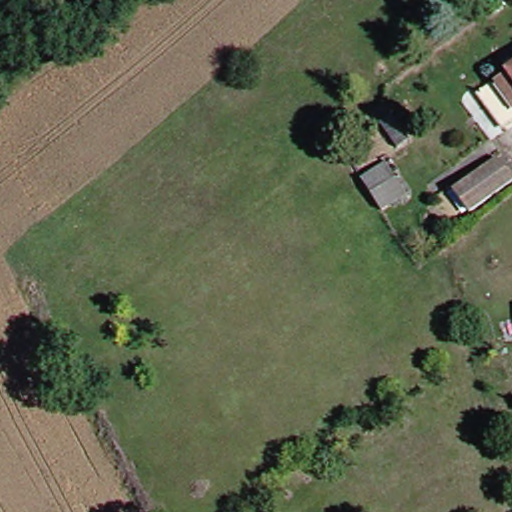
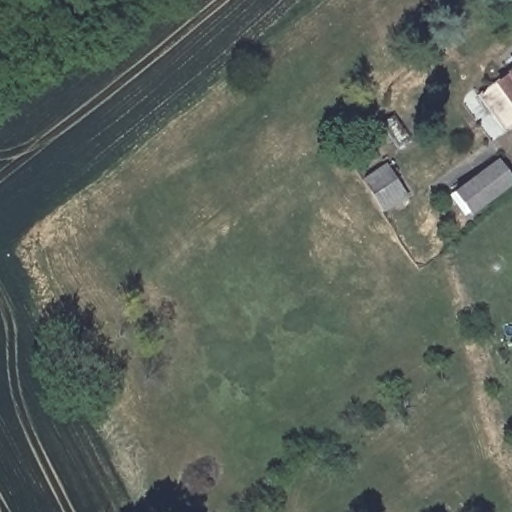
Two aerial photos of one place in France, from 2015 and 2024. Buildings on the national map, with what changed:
unchanged [(485,96),(503,82),(512,75),(512,126),(509,128),(485,96)]
unchanged [(474,215),(456,193),(500,159),(512,174),(512,184),(474,215)]
unchanged [(384,167),(407,196),(383,215),(360,185),(384,167)]

